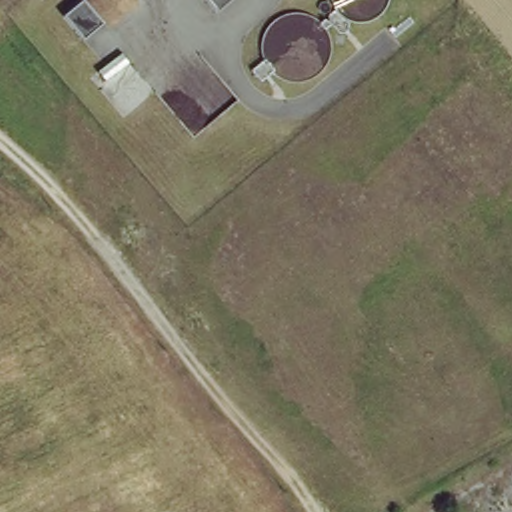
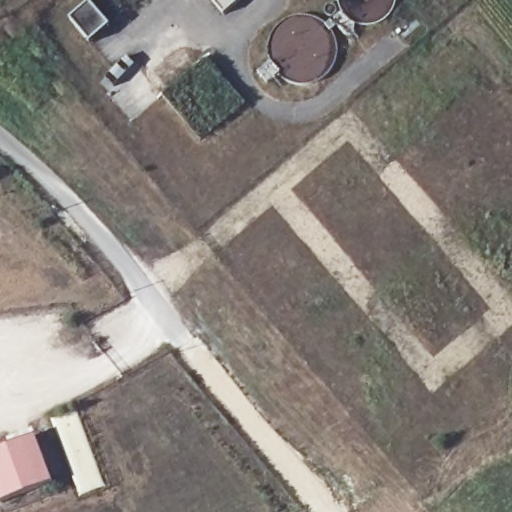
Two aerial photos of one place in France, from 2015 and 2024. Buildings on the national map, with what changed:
new [(87,0),(105,22),(85,40),(65,15),(83,0),(87,0)]
unchanged [(216,0),(240,0),(226,12),(216,0)]
new [(49,479),(0,498),(0,444),(31,431),(49,479)]

